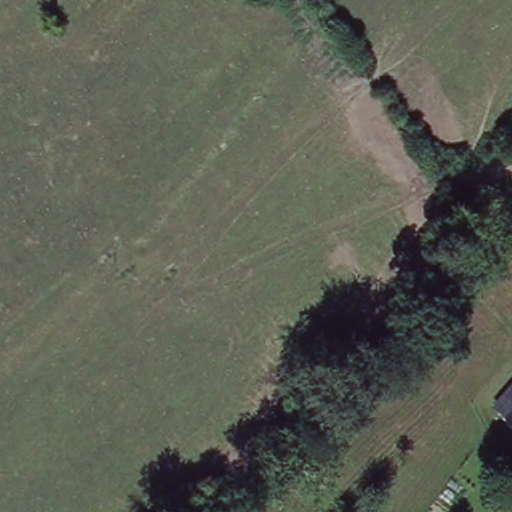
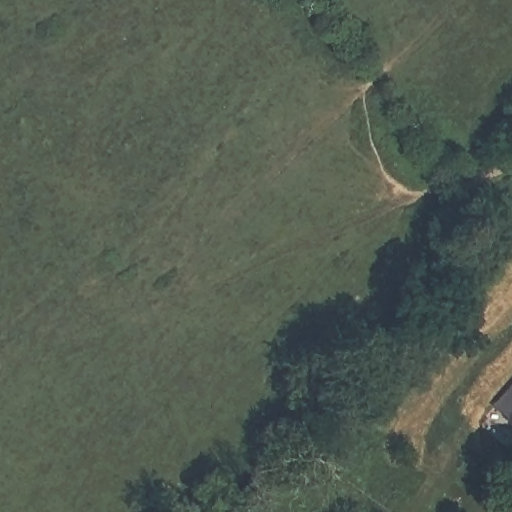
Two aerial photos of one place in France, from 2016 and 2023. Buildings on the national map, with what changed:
unchanged [(512,391),(512,413),(500,403),(512,391)]

